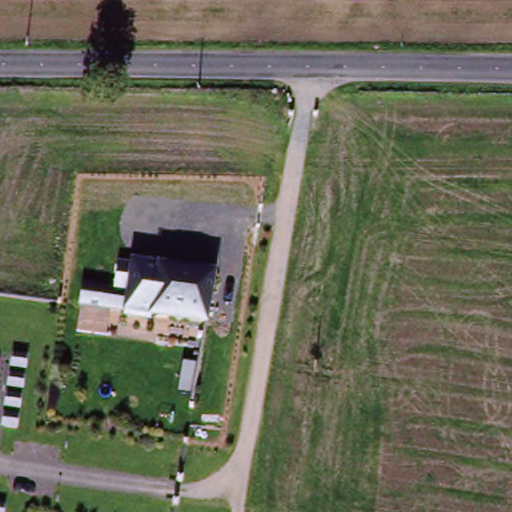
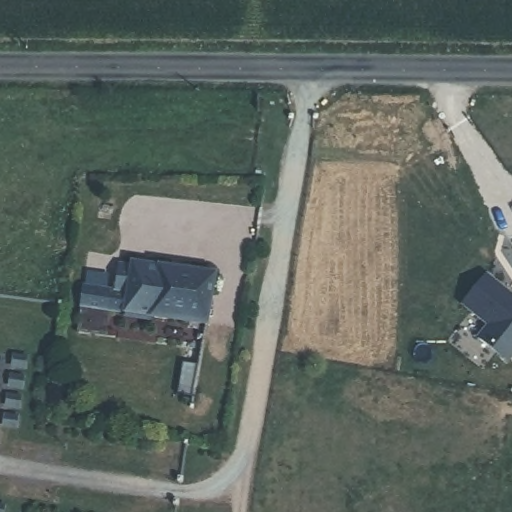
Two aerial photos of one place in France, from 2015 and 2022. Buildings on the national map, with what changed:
unchanged [(82,287),(112,290),(113,285),(115,264),(126,268),(128,262),(210,275),(211,275),(204,323),(139,313),(79,304),(82,287)]
new [(486,326),(460,305),(486,272),(512,293),(512,358),(507,364),(474,337),(486,326)]

